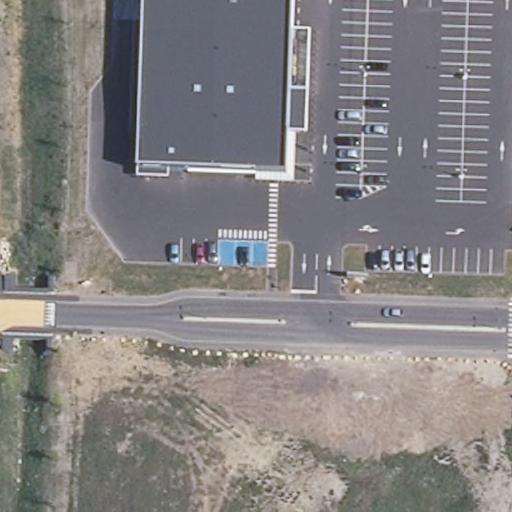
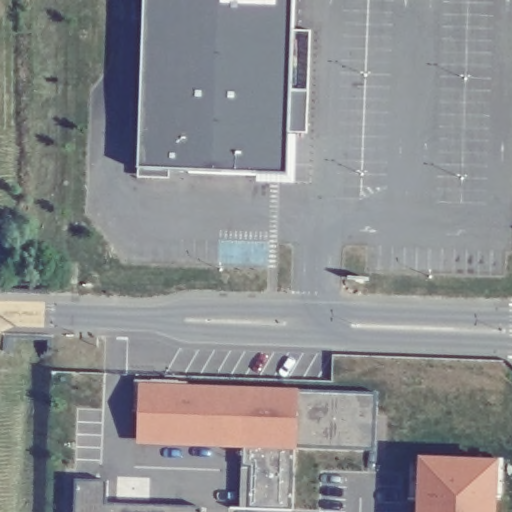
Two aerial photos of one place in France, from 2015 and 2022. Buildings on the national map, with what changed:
unchanged [(144,0),(292,0),(288,88),(310,90),(308,134),(288,134),(285,178),(138,171),(144,0)]
new [(379,391),(375,450),(296,448),(294,512),(240,509),(243,448),(137,444),(138,382),(379,391)]
new [(499,512),(417,512),(420,456),(500,458),(499,512)]
new [(105,503),(200,509),(200,512),(73,512),(72,480),(106,480),(105,503)]

